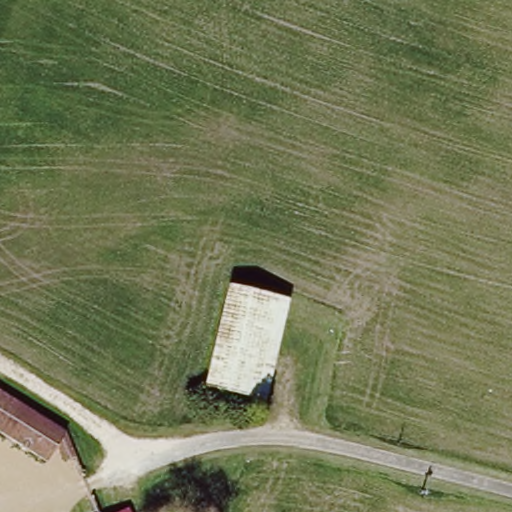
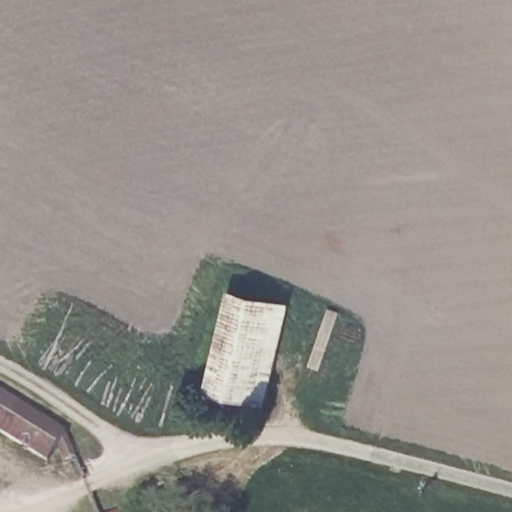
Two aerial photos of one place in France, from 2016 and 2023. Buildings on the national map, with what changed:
unchanged [(242,282),(293,300),(258,400),(207,382),(242,282)]
unchanged [(45,451),(0,429),(0,391),(60,421),(45,451)]
unchanged [(128,505),(131,512),(113,512),(128,505)]

